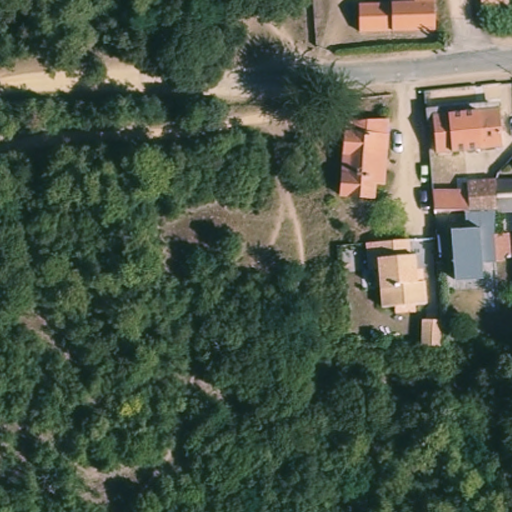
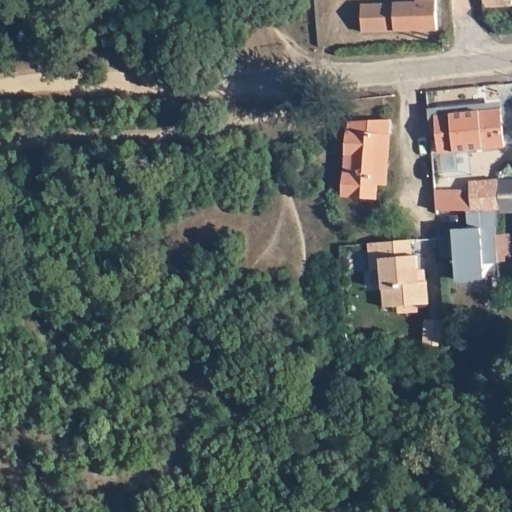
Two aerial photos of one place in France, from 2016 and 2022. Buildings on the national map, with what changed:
unchanged [(420,9),(420,0),(440,0),(441,35),(366,39),(365,11),(420,9)]
unchanged [(511,0),(511,7),(483,9),(483,0),(511,0)]
unchanged [(441,117),(504,111),(507,149),(445,155),(441,117)]
unchanged [(348,127),(389,126),(386,163),(385,179),(384,190),(376,190),(375,205),(342,202),(344,181),(345,162),(348,127)]
unchanged [(430,197),(464,197),(463,187),(493,186),(493,190),(493,216),(481,216),(462,217),(431,217),(430,197)]
unchanged [(493,190),(512,189),(512,216),(493,216),(493,190)]
unchanged [(479,267),(480,280),(453,282),(448,236),(464,235),(462,217),(481,216),(493,216),(492,232),(491,241),(503,240),(505,262),(498,262),(499,267),(498,268),(493,269),(493,266),(479,267)]
unchanged [(406,262),(411,262),(414,288),(421,287),(423,310),(379,313),(374,249),(405,246),(406,262)]
unchanged [(439,352),(420,352),(421,327),(440,328),(439,352)]

